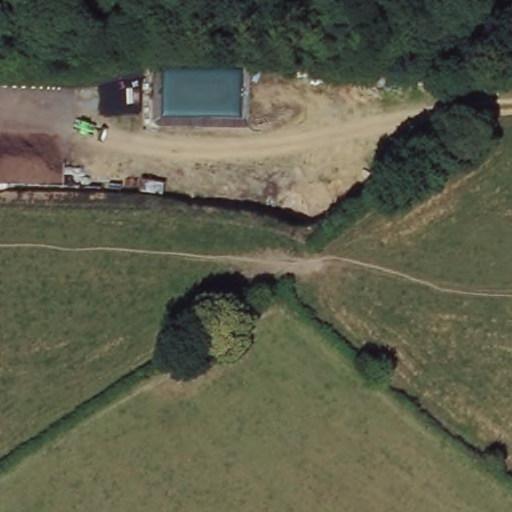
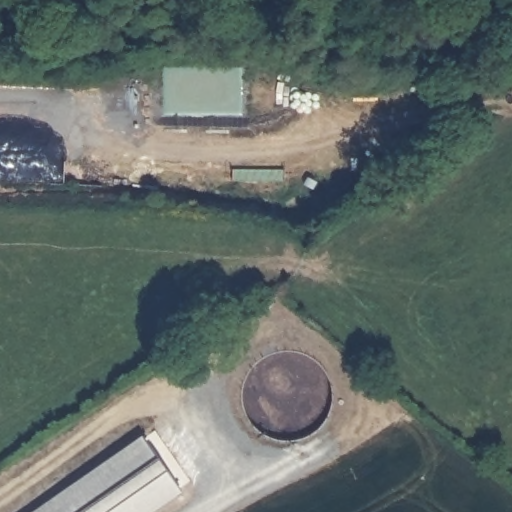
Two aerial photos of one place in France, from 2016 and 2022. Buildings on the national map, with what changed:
new [(149,512),(31,512),(143,434),(181,490),(149,512)]

